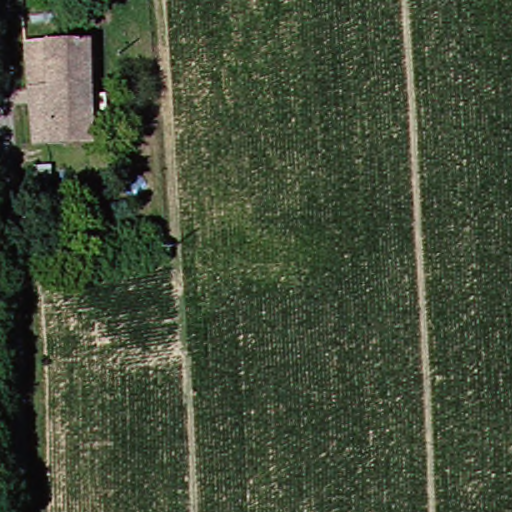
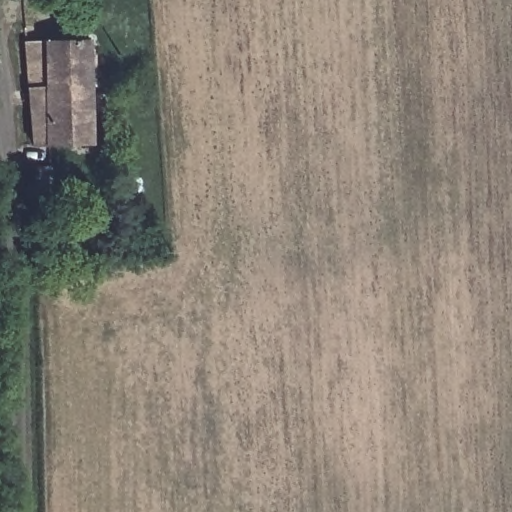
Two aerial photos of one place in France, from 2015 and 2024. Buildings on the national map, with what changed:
unchanged [(88,37),(88,144),(43,144),(41,38),(88,37)]
unchanged [(24,144),(24,38),(41,38),(43,144),(24,144)]
unchanged [(47,190),(47,211),(30,211),(31,190),(47,190)]

